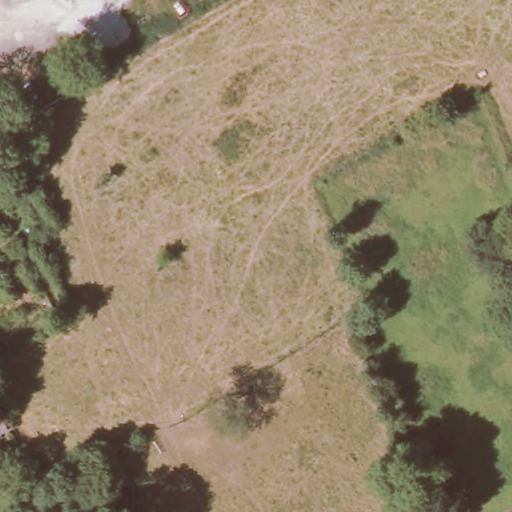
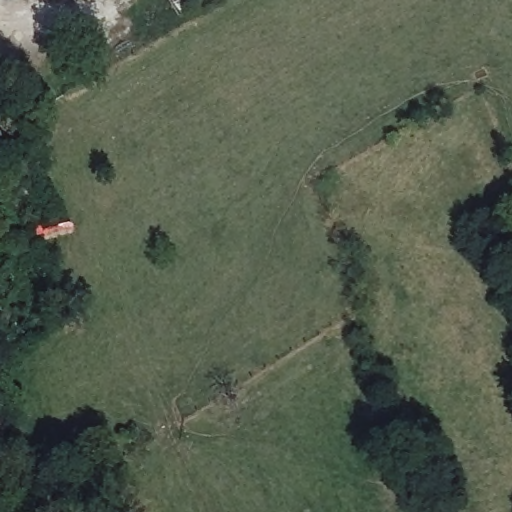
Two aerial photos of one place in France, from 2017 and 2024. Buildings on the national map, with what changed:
unchanged [(0,432),(0,419),(6,429),(0,432)]

